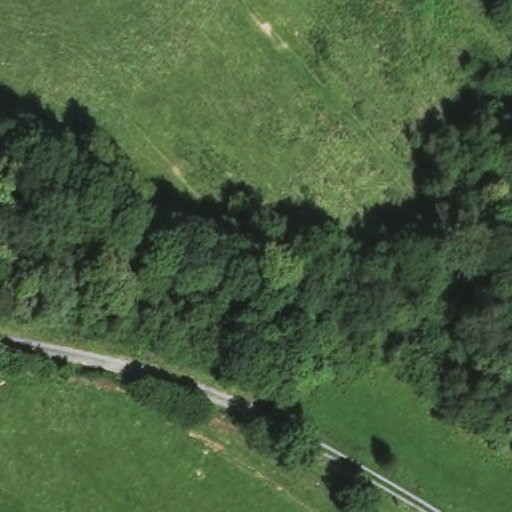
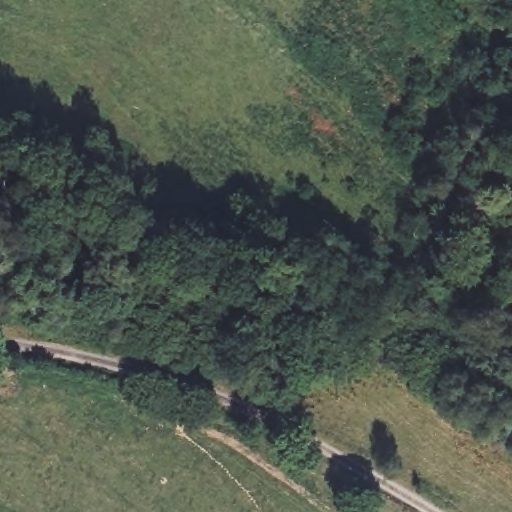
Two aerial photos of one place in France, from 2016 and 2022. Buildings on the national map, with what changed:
[]

